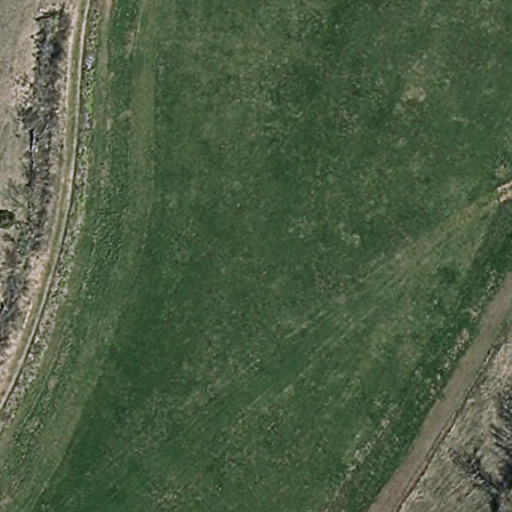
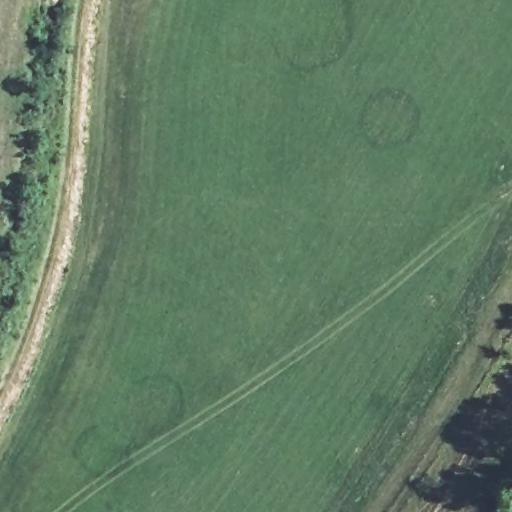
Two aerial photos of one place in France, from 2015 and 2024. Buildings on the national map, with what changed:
[]

